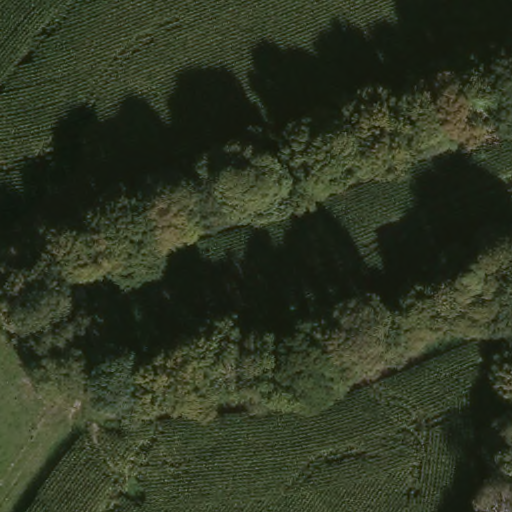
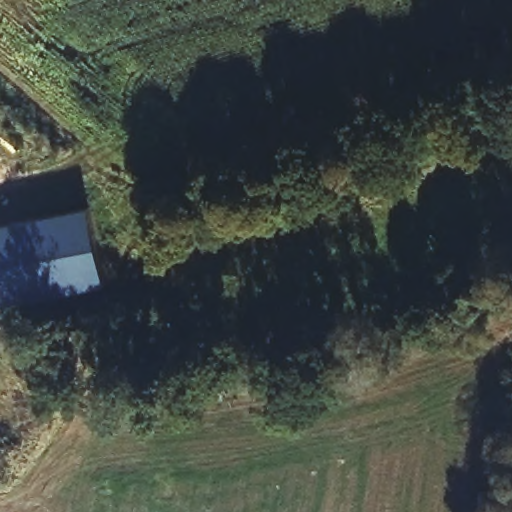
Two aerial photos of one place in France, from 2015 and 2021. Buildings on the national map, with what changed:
new [(89,207),(107,285),(0,306),(0,224),(89,207)]

